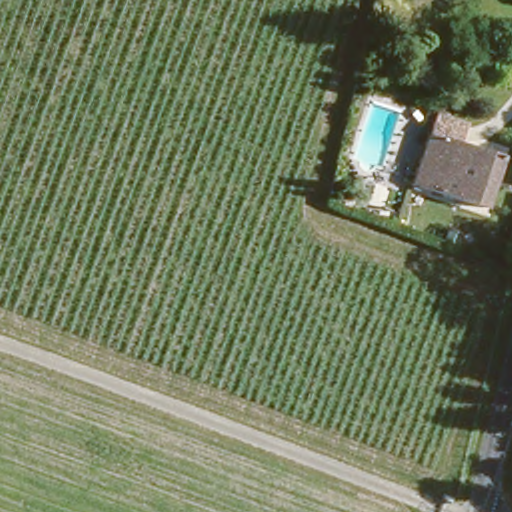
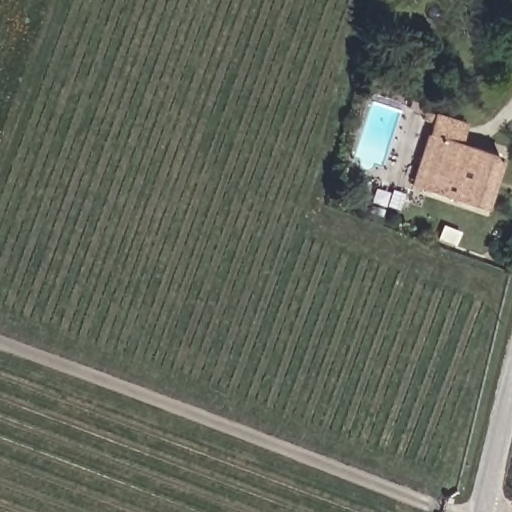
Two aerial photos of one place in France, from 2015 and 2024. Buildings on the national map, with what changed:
unchanged [(466,134),(499,142),(485,196),(478,194),(419,180),(423,159),(434,120),(434,118),(429,117),(432,106),(471,114),(466,134)]

